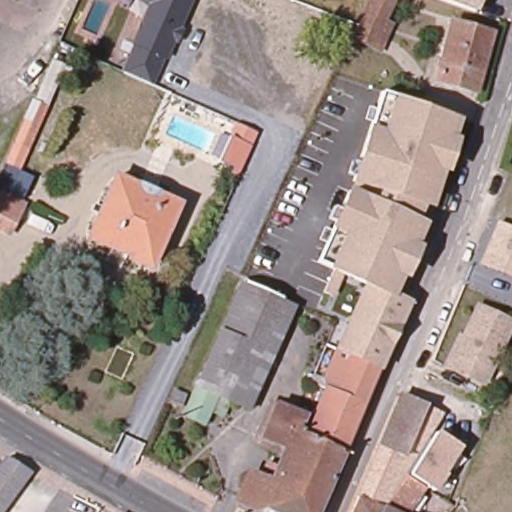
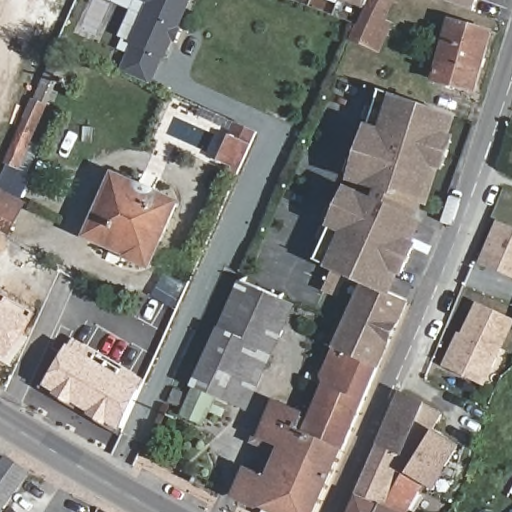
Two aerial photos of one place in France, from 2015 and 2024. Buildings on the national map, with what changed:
new [(3,0),(0,5),(0,0),(3,0)]
unchanged [(184,28),(177,42),(174,42),(166,60),(162,59),(152,85),(120,71),(147,4),(140,0),(192,0),(181,26),(184,28)]
new [(340,0),(368,0),(364,9),(341,1),(340,0)]
unchanged [(375,52),(356,43),(377,0),(387,0),(397,5),(375,52)]
unchanged [(444,0),(477,0),(473,11),(444,0)]
unchanged [(488,34),(471,91),(434,80),(450,24),(488,34)]
unchanged [(62,68),(19,169),(5,163),(50,62),(62,68)]
unchanged [(387,292),(369,285),(367,288),(325,272),(328,263),(318,260),(346,189),(373,200),(375,191),(350,184),(380,91),(461,117),(455,138),(459,140),(448,175),(443,174),(433,207),(424,206),(418,219),(426,222),(416,244),(422,247),(408,278),(403,277),(393,295),(387,292)]
new [(235,125),(255,135),(236,177),(230,173),(231,169),(218,162),(235,125)]
unchanged [(175,205),(148,265),(87,239),(115,177),(175,205)]
unchanged [(5,202),(10,192),(31,205),(16,234),(0,225),(0,200),(5,202)]
unchanged [(512,279),(478,265),(496,220),(512,227),(512,279)]
unchanged [(261,290),(293,305),(246,409),(216,396),(202,424),(182,414),(242,282),(261,290)]
unchanged [(343,456),(308,439),(330,388),(330,387),(327,376),(338,352),(367,288),(369,285),(387,292),(393,295),(410,302),(343,456)]
new [(9,361),(0,356),(0,293),(36,313),(9,361)]
unchanged [(448,367),(476,305),(511,321),(483,382),(448,367)]
new [(95,356),(121,371),(125,367),(146,380),(142,390),(120,432),(108,424),(106,427),(87,416),(90,413),(74,403),(72,407),(54,396),(55,393),(45,387),(69,345),(74,338),(97,352),(95,356)]
unchanged [(405,458),(400,470),(385,510),(383,512),(357,512),(363,498),(361,496),(405,396),(428,407),(405,458)]
unchanged [(319,512),(272,512),(243,499),(255,473),(274,482),(290,447),(268,438),(282,407),(305,417),(297,435),(308,439),(343,456),(319,512)]
unchanged [(444,414),(431,440),(450,450),(427,487),(425,493),(415,512),(383,512),(385,510),(400,470),(405,458),(428,407),(444,414)]
unchanged [(0,510),(0,465),(5,458),(28,472),(0,510)]
unchanged [(481,482),(472,503),(459,498),(468,476),(481,482)]

